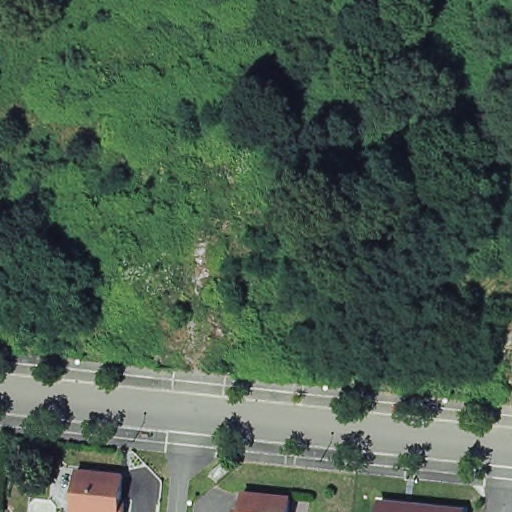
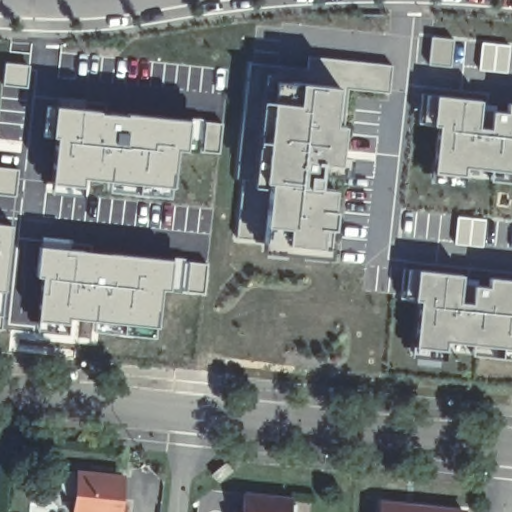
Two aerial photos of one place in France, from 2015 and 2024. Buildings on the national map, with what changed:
new [(453,42),(450,69),(429,67),(432,39),(453,42)]
new [(511,48),(508,74),(480,71),(482,46),(511,48)]
new [(5,59),(30,62),(26,87),(1,84),(5,59)]
new [(390,95),(350,91),(343,170),(324,168),(321,191),(335,193),(330,259),(262,253),(265,244),(235,242),(250,64),(309,69),(309,59),(392,67),(390,95)]
new [(512,181),(463,176),(463,185),(430,182),(437,126),(417,124),(421,93),(512,100),(512,181)]
new [(223,123),(220,155),(175,151),(172,186),(83,180),(82,185),(51,183),(55,137),(51,137),(54,106),(223,123)]
new [(19,169),(17,198),(0,196),(0,167),(19,169)]
new [(486,222),(483,248),(455,245),(457,220),(486,222)]
new [(15,224),(3,331),(0,331),(0,223),(15,224)]
new [(208,261),(205,297),(162,294),(159,326),(38,319),(41,278),(35,278),(38,246),(208,261)]
new [(512,359),(447,352),(447,361),(415,358),(422,302),(402,300),(405,269),(512,277),(512,359)]
unchanged [(127,476),(123,512),(79,512),(81,471),(127,476)]
unchanged [(292,512),(245,512),(247,494),(294,499),(292,512)]
unchanged [(469,509),(469,512),(380,512),(380,500),(469,509)]

